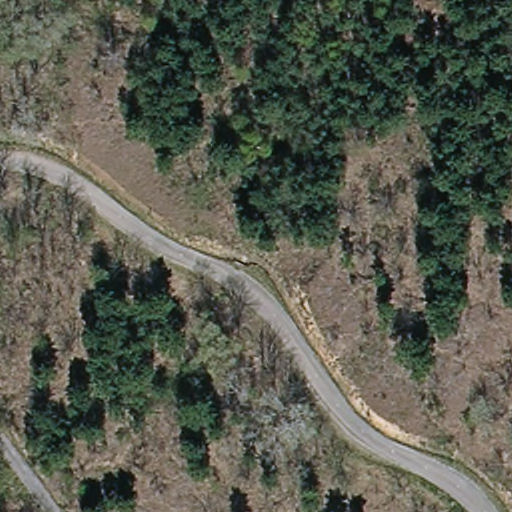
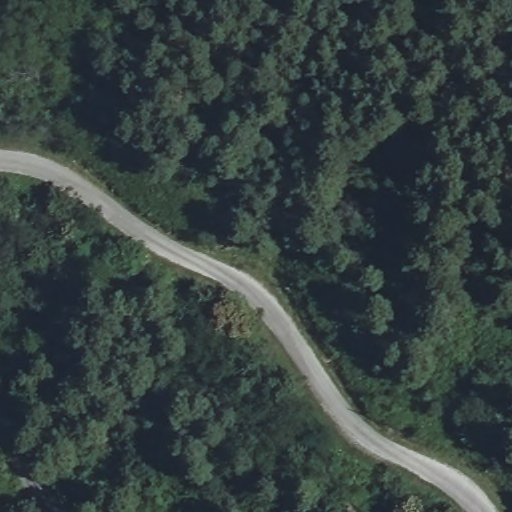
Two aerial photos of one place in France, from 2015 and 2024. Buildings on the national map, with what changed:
[]

